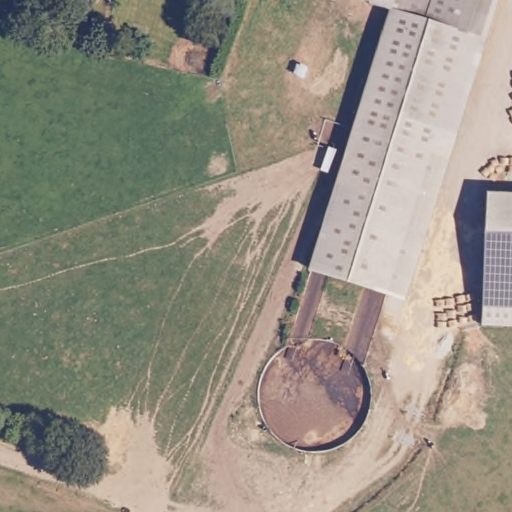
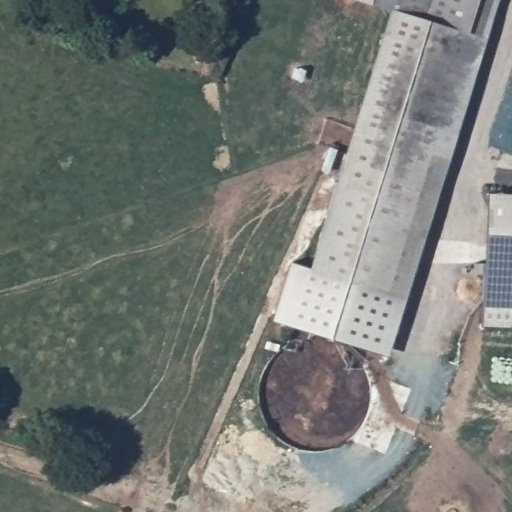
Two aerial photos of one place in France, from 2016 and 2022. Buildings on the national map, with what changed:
unchanged [(399,0),(503,0),(453,159),(434,153),(418,206),(341,182),(394,15),(399,0)]
unchanged [(354,0),(399,0),(394,15),(354,0)]
new [(389,354),(274,318),(291,262),(313,269),(391,292),(418,206),(434,153),(453,159),(389,354)]
unchanged [(418,206),(391,292),(313,269),(341,182),(418,206)]
unchanged [(512,331),(481,330),(488,194),(512,195),(512,331)]

